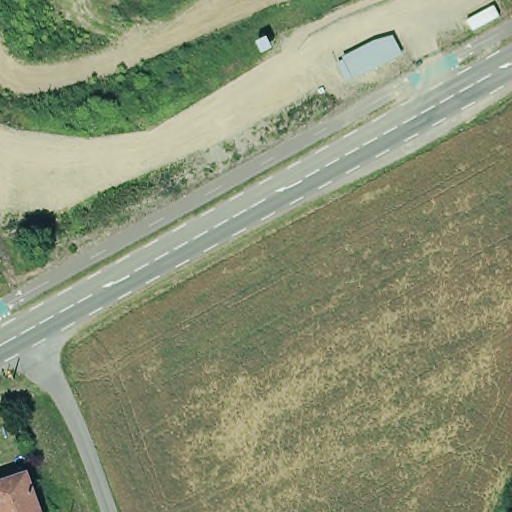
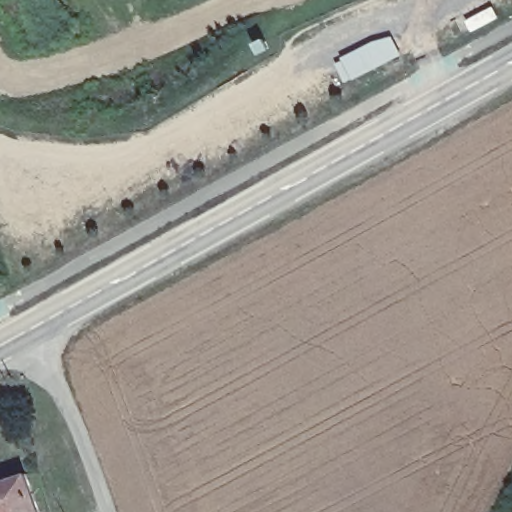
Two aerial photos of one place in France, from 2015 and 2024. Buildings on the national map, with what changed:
unchanged [(344,82),(338,64),(343,61),(342,58),(374,41),(393,36),(402,56),(344,82)]
unchanged [(30,477),(41,512),(20,512),(11,483),(30,477)]
unchanged [(20,512),(0,512),(0,487),(11,483),(20,512)]

